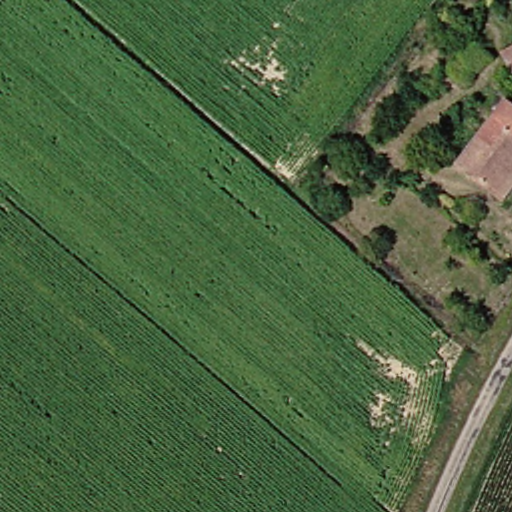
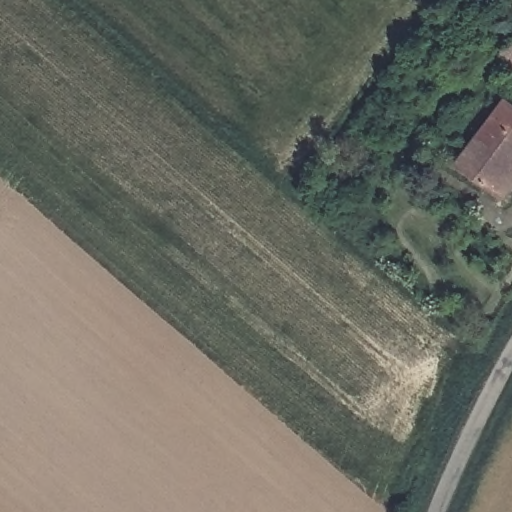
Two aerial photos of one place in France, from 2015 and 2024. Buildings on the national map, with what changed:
unchanged [(512,45),(512,84),(495,53),(512,45)]
unchanged [(496,95),(512,107),(512,172),(492,195),(487,191),(477,184),(446,159),(496,95)]

